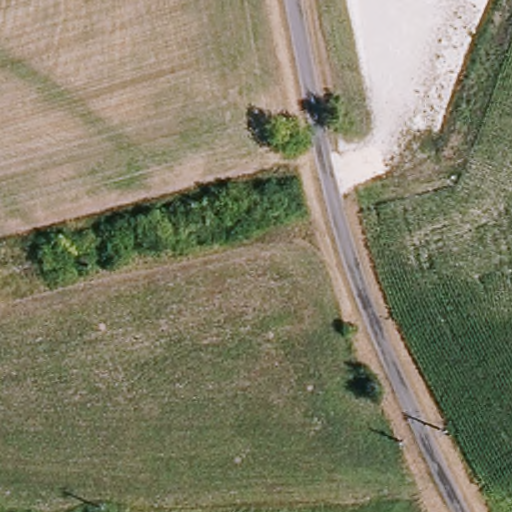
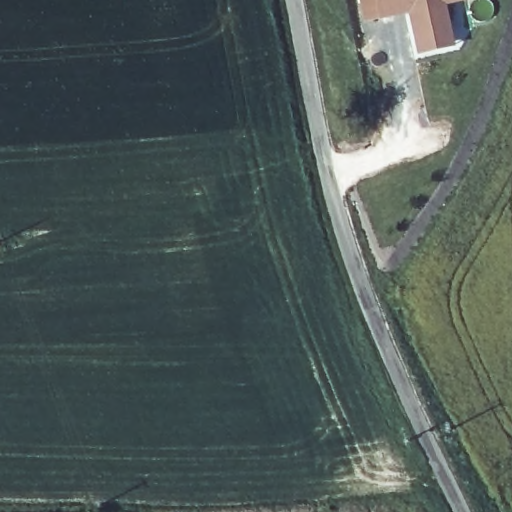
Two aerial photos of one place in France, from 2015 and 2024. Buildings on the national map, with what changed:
new [(468,0),(447,5),(455,47),(418,56),(410,13),(380,20),(376,0),(468,0)]

